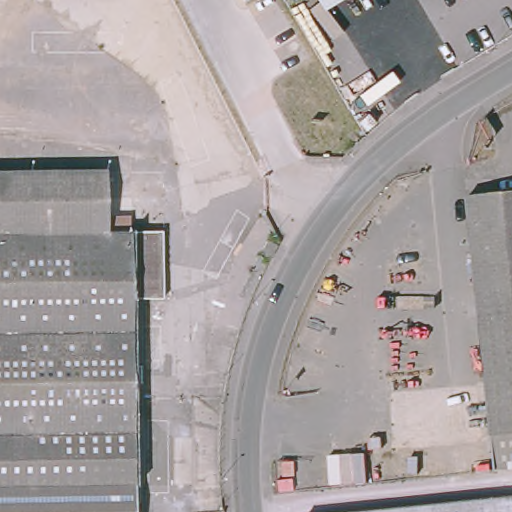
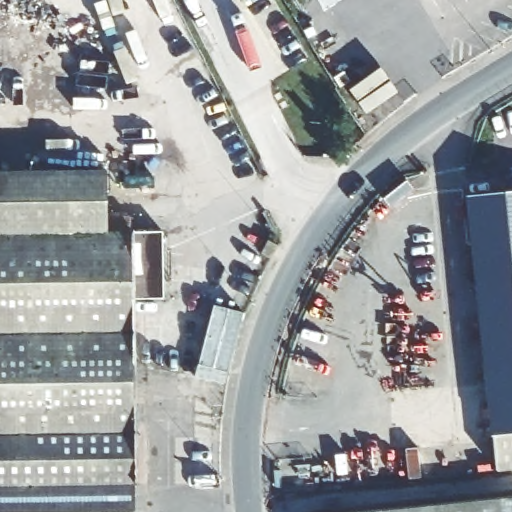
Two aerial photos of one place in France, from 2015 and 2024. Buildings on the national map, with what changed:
new [(244,0),(251,0),(246,3),(244,0)]
unchanged [(320,0),(336,0),(324,7),(320,0)]
unchanged [(133,299),(131,512),(0,512),(0,167),(111,170),(110,232),(165,233),(164,300),(133,299)]
unchanged [(491,432),(486,377),(469,195),(512,190),(512,467),(494,468),(491,432)]
new [(224,385),(195,377),(215,306),(244,313),(224,385)]
unchanged [(512,493),(512,512),(303,512),(512,493)]

